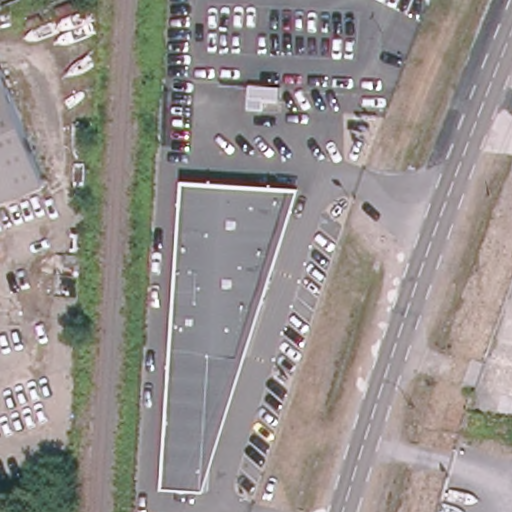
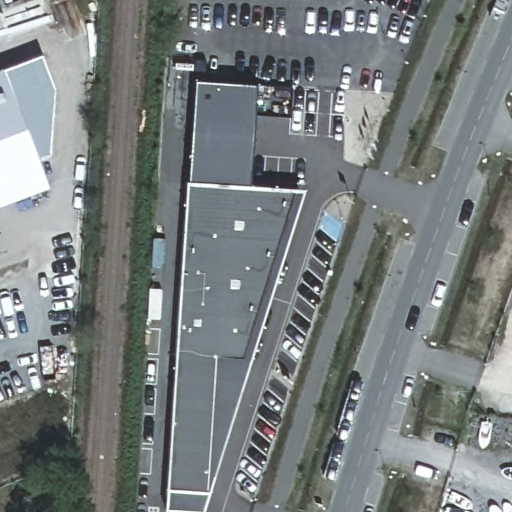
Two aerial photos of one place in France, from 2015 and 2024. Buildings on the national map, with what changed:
unchanged [(4,7),(0,8),(0,0),(2,0),(4,7)]
new [(35,156),(2,68),(42,55),(55,90),(49,152),(35,156)]
unchanged [(2,68),(46,185),(0,202),(0,69),(2,68)]
new [(195,80),(257,84),(249,188),(188,184),(195,80)]
unchanged [(307,192),(244,366),(212,363),(204,474),(195,505),(160,503),(182,183),(307,192)]
unchanged [(204,474),(212,363),(244,366),(204,474)]

